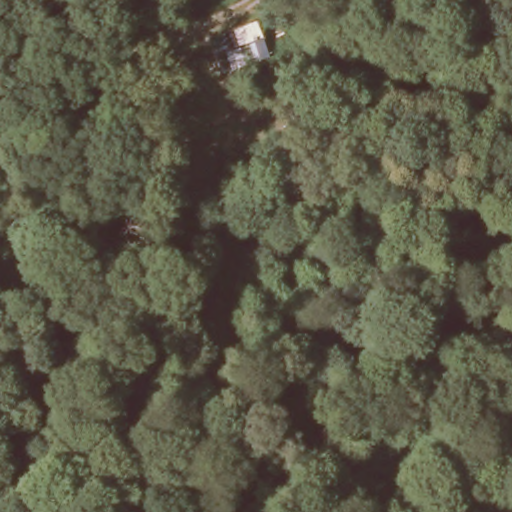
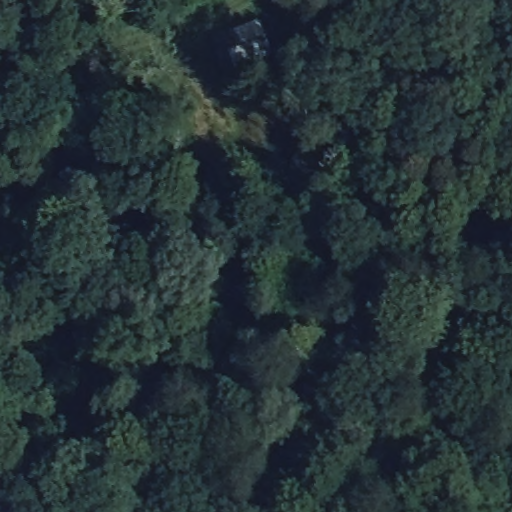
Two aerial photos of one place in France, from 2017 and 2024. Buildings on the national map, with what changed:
unchanged [(222,39),(259,21),(272,49),(235,66),(222,39)]

